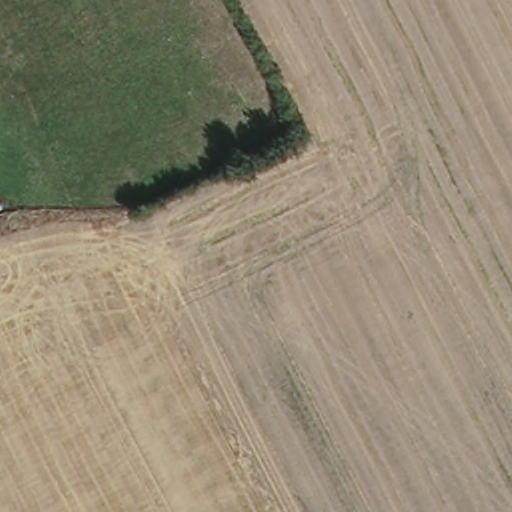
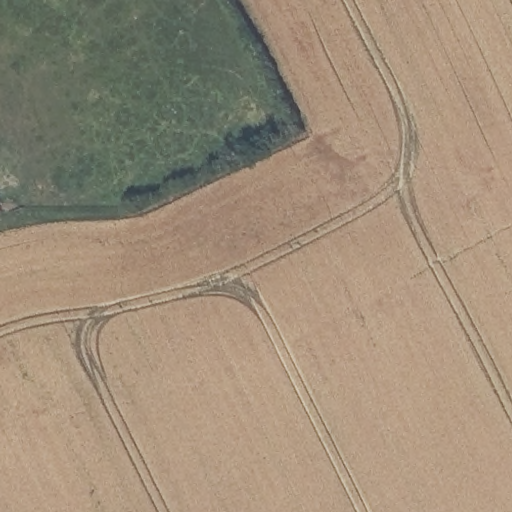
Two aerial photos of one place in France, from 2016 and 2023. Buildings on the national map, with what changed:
[]

